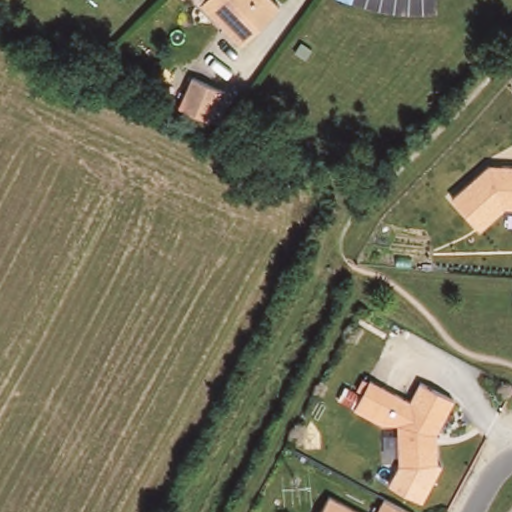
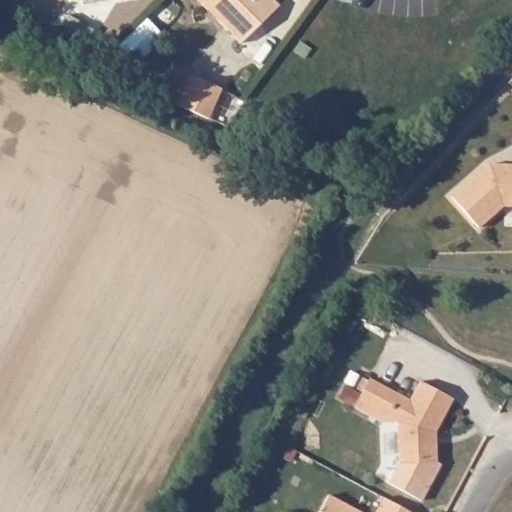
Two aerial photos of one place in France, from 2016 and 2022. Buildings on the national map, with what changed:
unchanged [(279,4),(240,43),(200,1),(202,0),(275,0),(279,4)]
unchanged [(180,102),(193,72),(223,85),(210,115),(180,102)]
unchanged [(483,226),(456,196),(496,163),(512,164),(512,208),(506,208),(483,226)]
unchanged [(374,374),(415,395),(425,376),(458,394),(440,428),(441,458),(403,459),(402,418),(387,418),(359,403),(374,374)]
unchanged [(403,459),(441,458),(421,500),(390,483),(403,455),(403,459)]
unchanged [(374,512),(322,512),(333,490),(374,512)]
unchanged [(421,510),(421,512),(379,512),(388,493),(421,510)]

